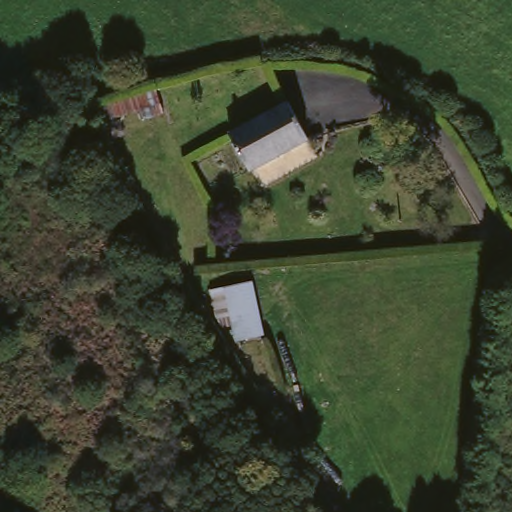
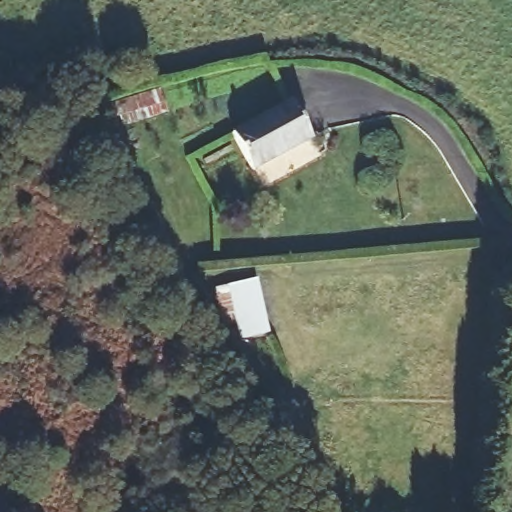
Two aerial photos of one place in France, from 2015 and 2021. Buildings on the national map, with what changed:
unchanged [(251,171),(231,135),(290,102),(311,139),(251,171)]
unchanged [(266,334),(221,343),(210,290),(255,282),(266,334)]

